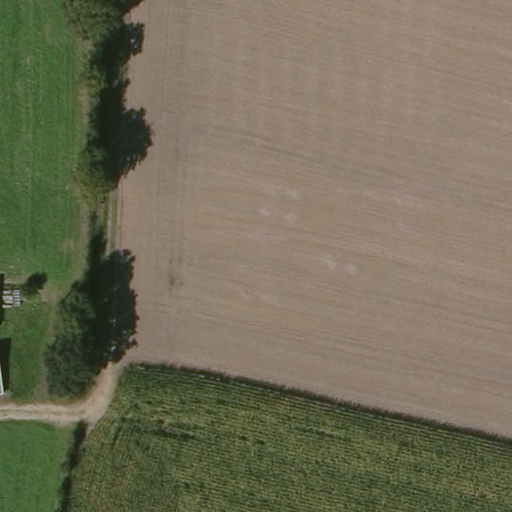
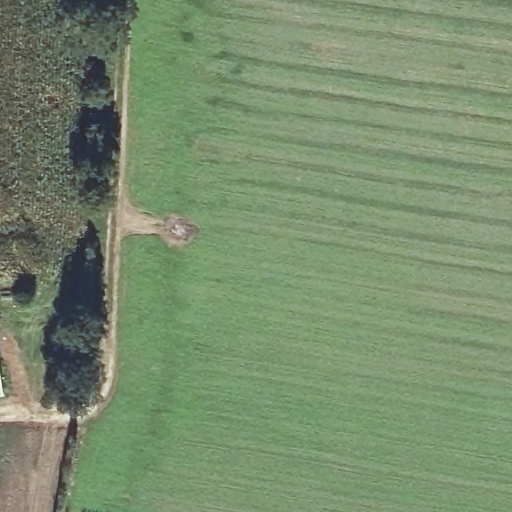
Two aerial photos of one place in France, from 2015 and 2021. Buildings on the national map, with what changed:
unchanged [(1,365),(5,392),(0,393),(0,365),(1,365)]

